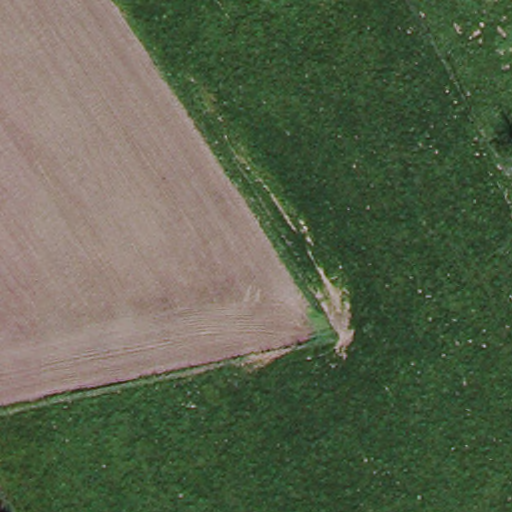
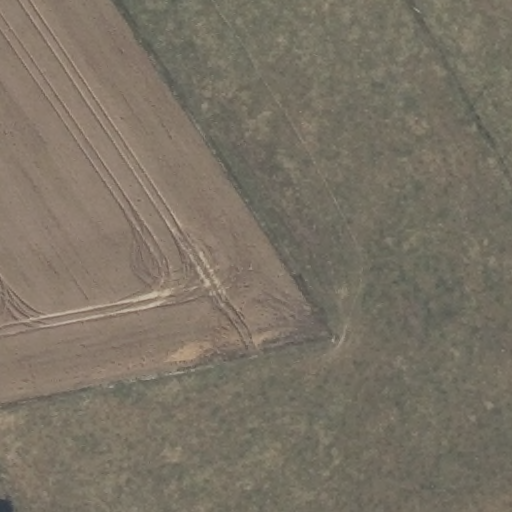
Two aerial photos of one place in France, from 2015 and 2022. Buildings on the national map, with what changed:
[]

